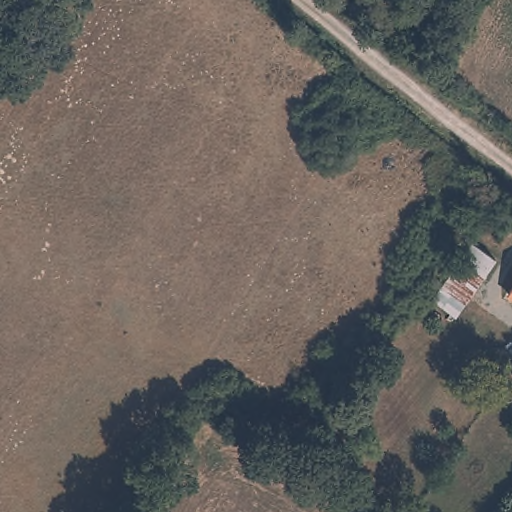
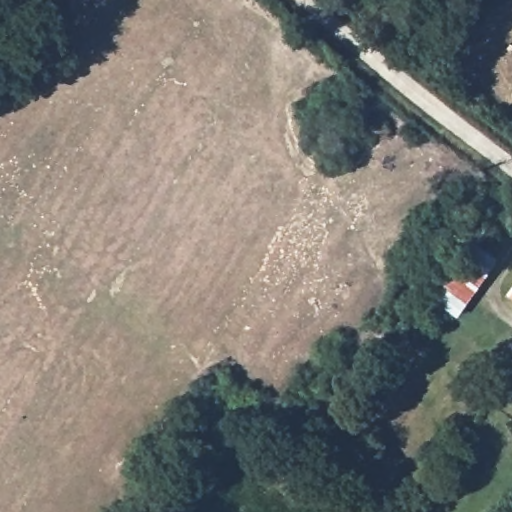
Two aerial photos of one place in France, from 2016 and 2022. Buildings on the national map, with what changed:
unchanged [(491,266),(460,308),(437,292),(468,249),(491,266)]
unchanged [(509,295),(512,291),(512,298),(509,295)]

